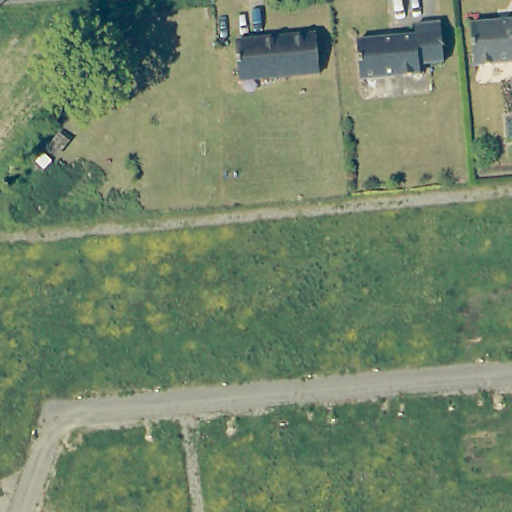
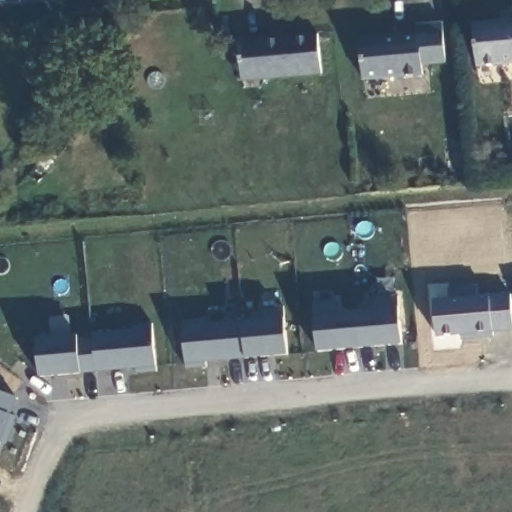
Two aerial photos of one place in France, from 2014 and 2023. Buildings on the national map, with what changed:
unchanged [(474,20),(512,19),(512,59),(508,59),(477,61),(474,20)]
unchanged [(360,41),(418,34),(419,24),(442,21),(445,62),(423,64),(424,74),(364,81),(360,41)]
unchanged [(240,39),(316,31),(321,70),(243,78),(240,39)]
new [(312,313),(311,302),(333,300),(334,311),(374,307),(373,297),(396,295),(397,307),(401,343),(316,350),(312,313)]
new [(181,320),(203,318),(204,323),(238,320),(260,317),(258,307),(279,305),(281,317),(285,354),(244,358),(205,362),(206,367),(185,368),(181,320)]
new [(77,335),(77,339),(90,338),(89,331),(130,328),(129,324),(150,322),(151,328),(154,364),(156,373),(134,375),(133,369),(81,373),(38,376),(35,338),(77,335)]

